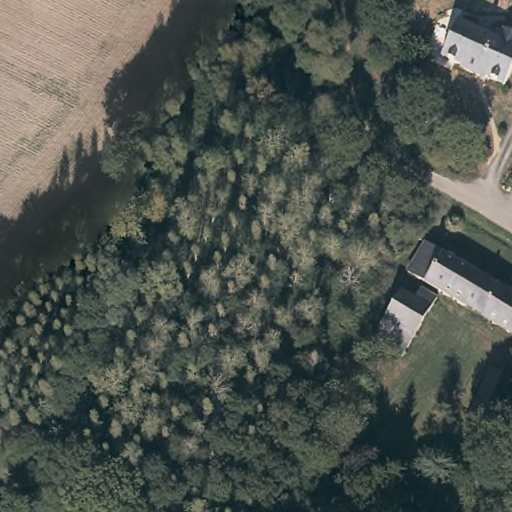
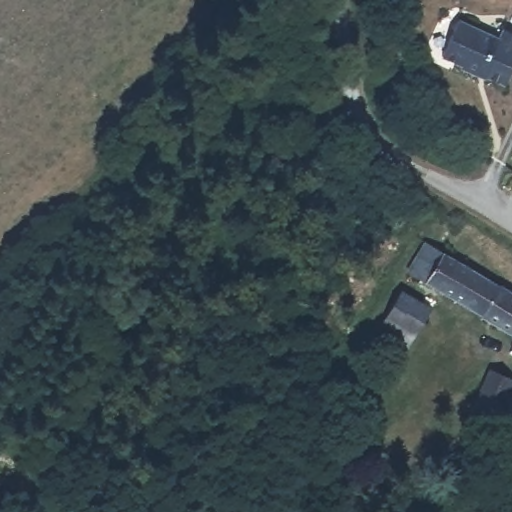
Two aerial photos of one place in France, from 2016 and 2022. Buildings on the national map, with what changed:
unchanged [(494,30),(499,20),(512,26),(512,65),(506,79),(479,66),(477,69),(458,60),(459,57),(441,49),(458,13),(494,30)]
unchanged [(512,290),(512,330),(409,271),(428,240),(512,290)]
unchanged [(439,295),(406,353),(389,346),(394,336),(381,328),(402,290),(417,297),(424,286),(439,295)]
unchanged [(512,374),(512,375),(489,425),(462,413),(487,362),(512,374)]

